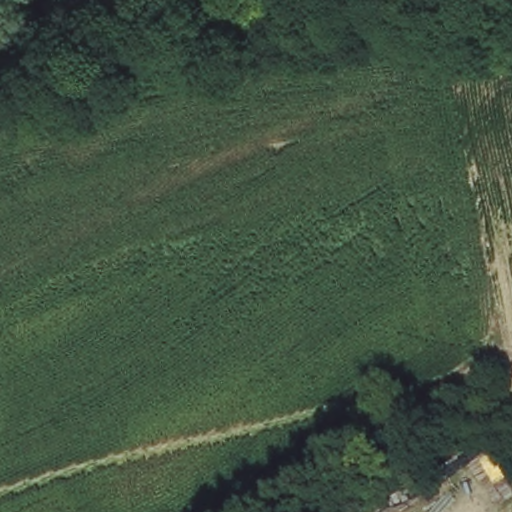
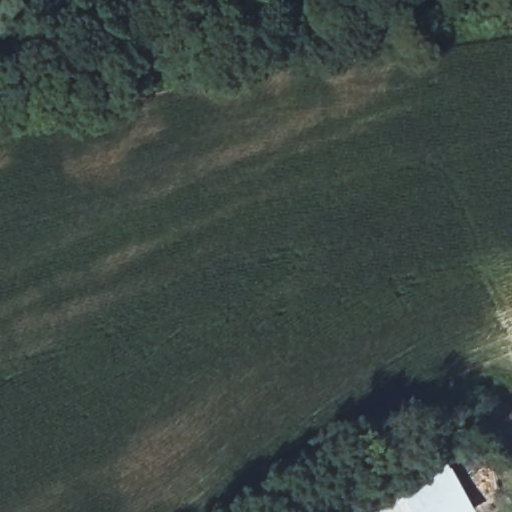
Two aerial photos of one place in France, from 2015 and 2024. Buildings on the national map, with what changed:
new [(447,463),(474,512),(359,512),(447,463)]

